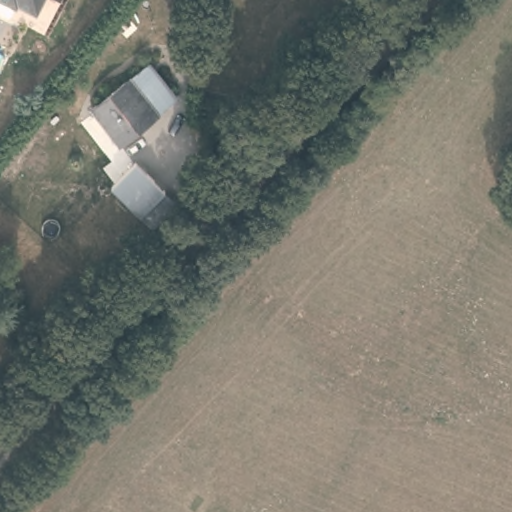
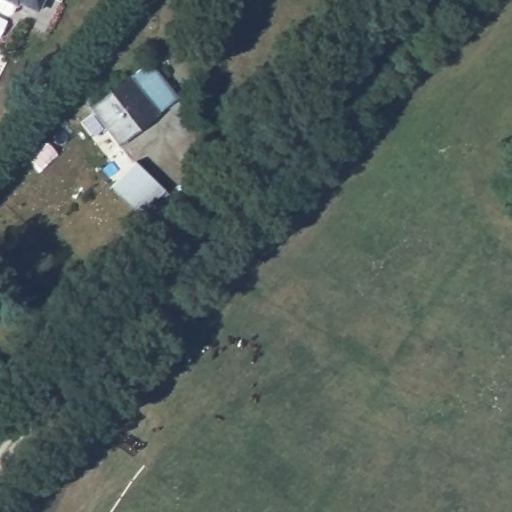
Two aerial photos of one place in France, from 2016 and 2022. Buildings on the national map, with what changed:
unchanged [(146,60),(176,96),(119,146),(88,109),(146,60)]
unchanged [(134,165),(158,194),(134,214),(109,186),(134,165)]

